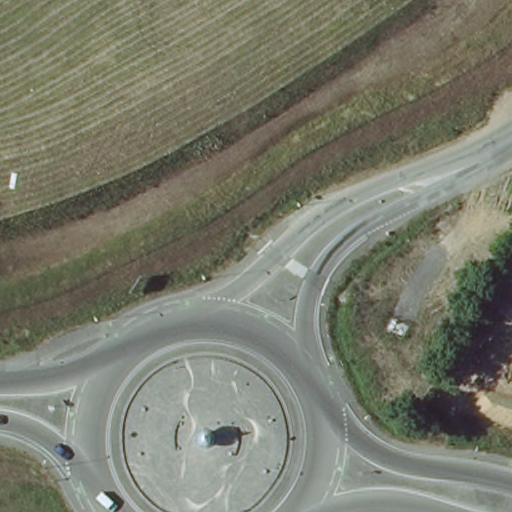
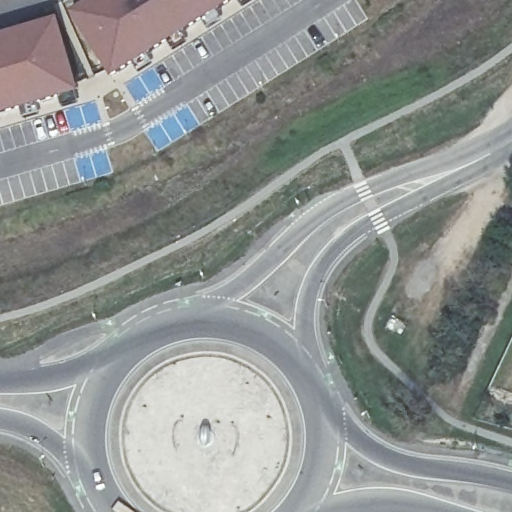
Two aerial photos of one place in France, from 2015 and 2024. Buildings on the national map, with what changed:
new [(256,0),(124,81),(81,9),(95,0),(256,0)]
new [(61,11),(92,91),(0,119),(0,30),(61,11)]

